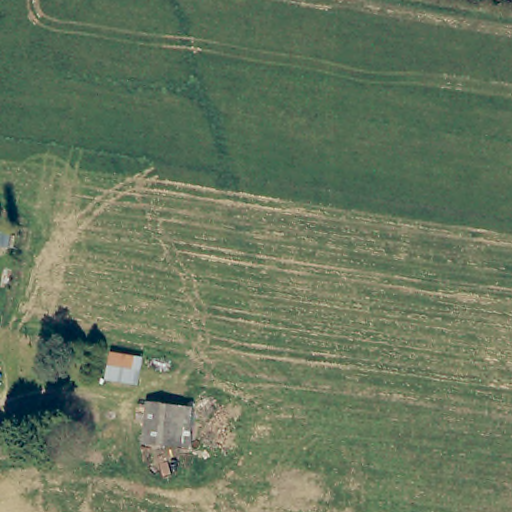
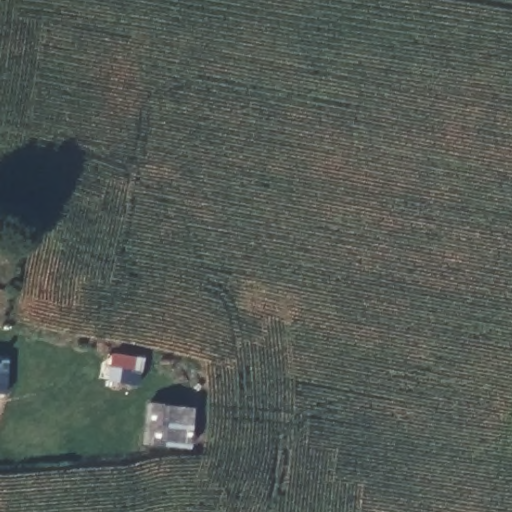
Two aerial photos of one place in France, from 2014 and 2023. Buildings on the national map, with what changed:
unchanged [(139,386),(109,382),(112,356),(142,360),(139,386)]
unchanged [(200,403),(197,454),(144,451),(145,400),(200,403)]

